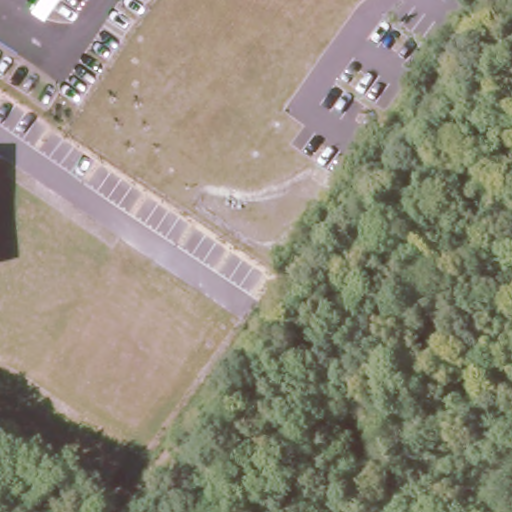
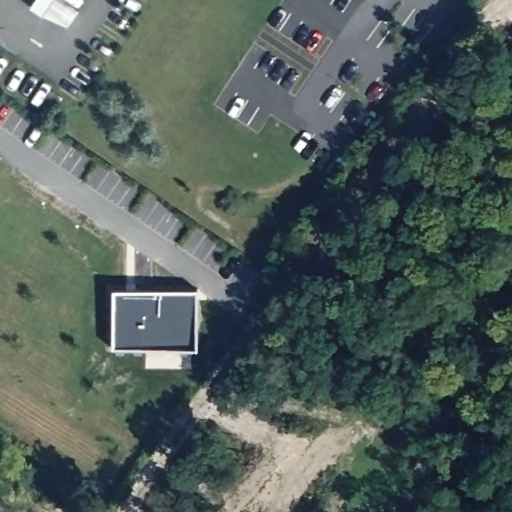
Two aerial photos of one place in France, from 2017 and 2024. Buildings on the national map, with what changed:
new [(197,348),(111,347),(111,288),(197,288),(197,348)]

